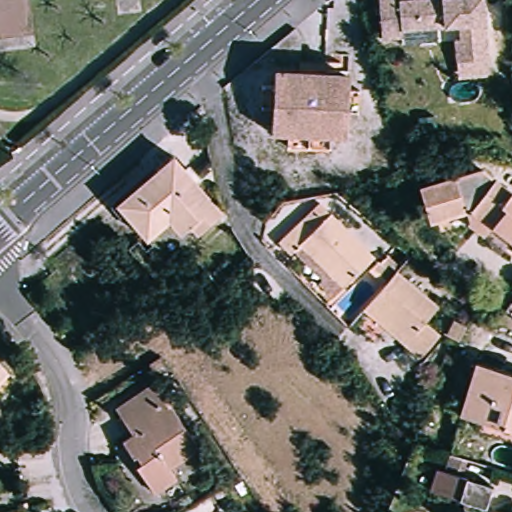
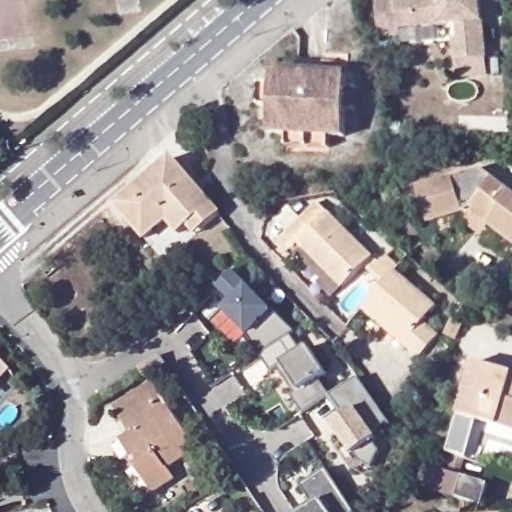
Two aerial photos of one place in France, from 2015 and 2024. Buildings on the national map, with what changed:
unchanged [(456,61),(454,39),(460,39),(458,25),(400,30),(401,36),(381,38),(378,0),(398,0),(404,0),(469,0),(470,2),(481,1),(486,58),(456,61)]
unchanged [(255,139),(257,113),(258,90),(259,79),(333,83),(332,95),(345,95),(343,117),(331,117),(330,143),(315,142),(313,154),(271,152),(272,140),(255,139)]
unchanged [(257,113),(245,112),(246,90),(258,90),(257,112),(257,113)]
unchanged [(173,151),(222,208),(197,229),(190,221),(180,229),(168,215),(146,234),(116,200),(173,151)]
unchanged [(465,207),(429,218),(418,183),(481,165),(512,188),(512,237),(490,221),(482,232),(470,222),(465,207)]
unchanged [(289,249),(277,237),(318,197),(373,253),(332,292),(318,278),(321,275),(292,245),(289,249)]
unchanged [(425,317),(440,330),(420,353),(363,304),(362,304),(385,279),(386,277),(370,265),(378,255),(380,258),(387,250),(400,261),(397,264),(396,265),(437,300),(425,317)]
new [(233,271),(273,311),(274,310),(296,333),(261,356),(246,338),(246,336),(225,312),(233,304),(218,287),(233,271)]
unchanged [(465,321),(457,336),(445,330),(452,315),(465,321)]
unchanged [(512,332),(496,324),(503,315),(512,320),(512,332)]
new [(302,353),(310,348),(327,375),(320,380),(330,397),(305,413),(292,396),(296,394),(277,368),(274,371),(261,356),(291,336),(302,353)]
unchanged [(512,421),(460,405),(476,352),(512,363),(512,421)]
unchanged [(9,366),(0,376),(0,358),(9,366)]
unchanged [(154,378),(198,443),(169,463),(176,473),(153,488),(135,461),(140,457),(136,451),(132,453),(122,437),(132,431),(115,404),(154,378)]
new [(390,423),(373,434),(376,440),(372,442),(380,452),(370,469),(358,463),(333,425),(343,418),(330,397),(332,395),(358,379),(390,423)]
unchanged [(489,480),(483,502),(430,485),(436,463),(489,480)]
new [(315,506),(302,487),(327,470),(354,512),(305,512),(315,506)]
unchanged [(220,505),(224,512),(209,512),(220,505)]
unchanged [(501,512),(473,512),(500,508),(501,512)]

